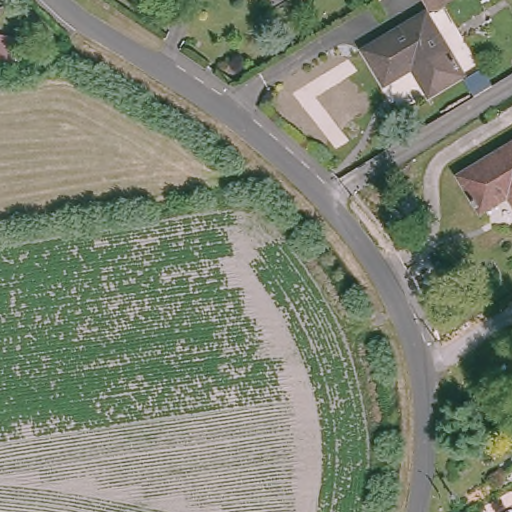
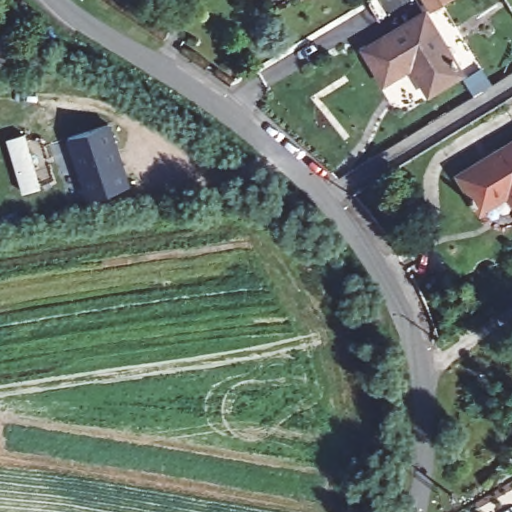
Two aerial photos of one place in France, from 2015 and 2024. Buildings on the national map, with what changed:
unchanged [(432,89),(415,62),(387,79),(367,46),(427,10),(463,70),(432,89)]
new [(132,186),(89,202),(67,138),(111,123),(132,186)]
unchanged [(504,189),(477,206),(456,170),(512,136),(512,202),(504,189)]

